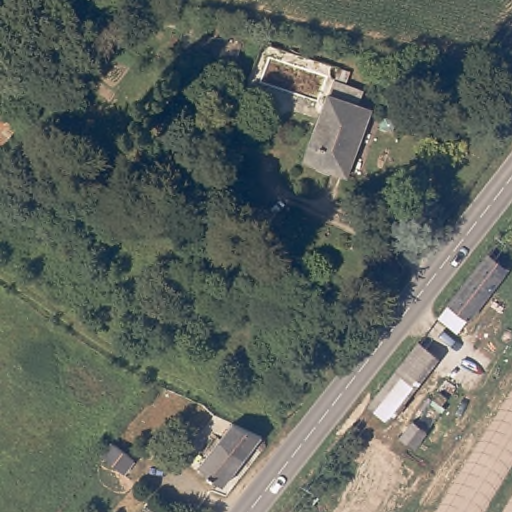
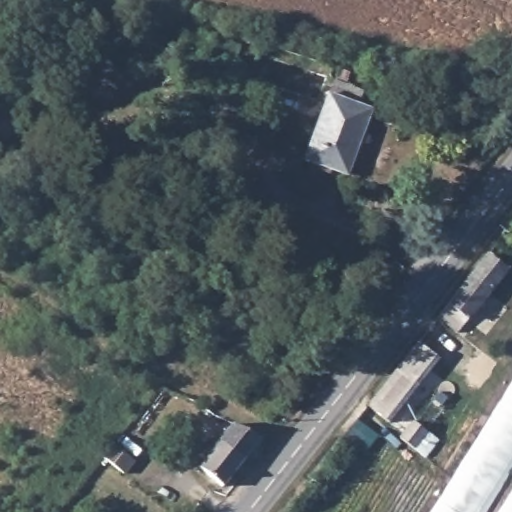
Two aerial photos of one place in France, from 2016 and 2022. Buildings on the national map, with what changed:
unchanged [(326,95),(370,110),(348,174),(305,160),(326,95)]
unchanged [(0,151),(0,114),(1,112),(20,129),(0,151)]
unchanged [(492,251),(512,266),(512,268),(462,330),(443,315),(492,251)]
unchanged [(417,346),(437,362),(387,424),(367,409),(417,346)]
new [(512,385),(512,512),(434,512),(512,385)]
unchanged [(194,443),(203,450),(213,437),(196,425),(210,408),(234,424),(260,435),(219,485),(182,458),(194,443)]
unchanged [(400,440),(413,424),(425,433),(411,450),(400,440)]
unchanged [(347,429),(358,437),(353,444),(341,436),(347,429)]

